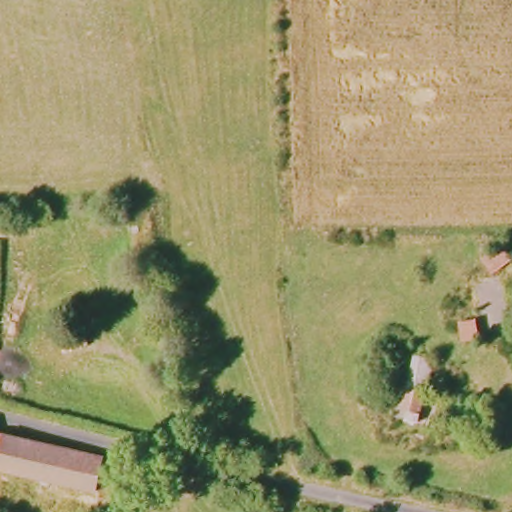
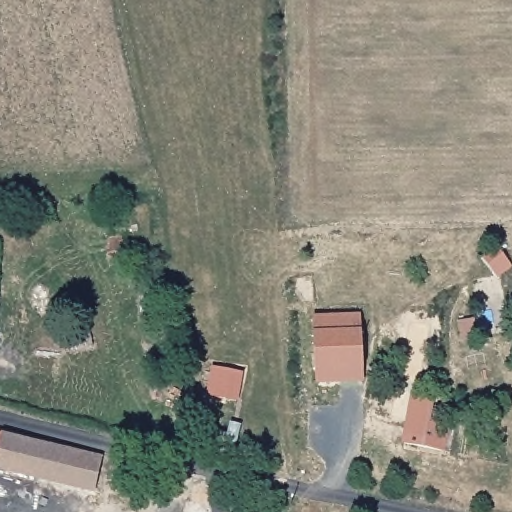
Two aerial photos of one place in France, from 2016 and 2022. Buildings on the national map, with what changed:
unchanged [(497,279),(507,334),(485,337),(476,283),(497,279)]
new [(364,382),(316,384),(313,316),(361,314),(364,382)]
demolished [(420,425),(401,419),(414,359),(435,362),(420,425)]
unchanged [(0,465),(0,434),(107,459),(103,492),(0,465)]

